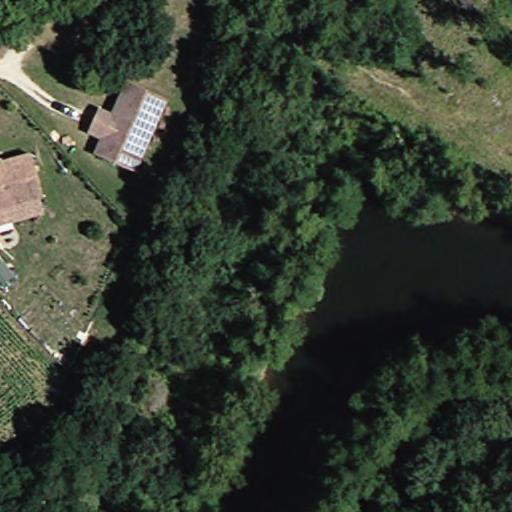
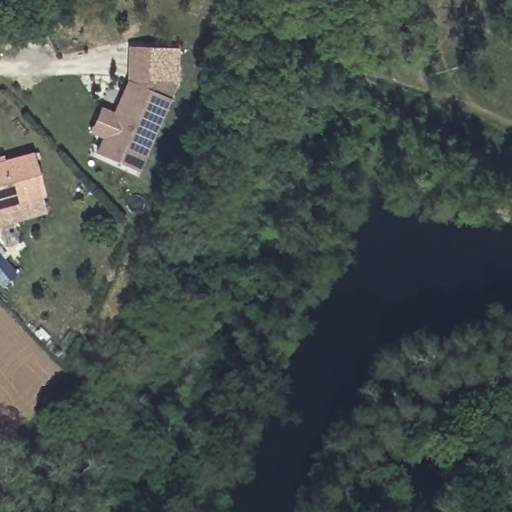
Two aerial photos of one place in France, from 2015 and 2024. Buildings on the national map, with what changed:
new [(124,81),(126,47),(175,49),(173,82),(164,99),(124,81)]
unchanged [(131,170),(92,153),(100,137),(86,131),(96,109),(109,115),(124,81),(164,99),(131,170)]
unchanged [(39,185),(35,186),(0,196),(0,151),(27,144),(39,185)]
unchanged [(40,200),(0,212),(0,196),(35,186),(40,200)]
new [(1,282),(0,280),(0,257),(13,272),(1,282)]

